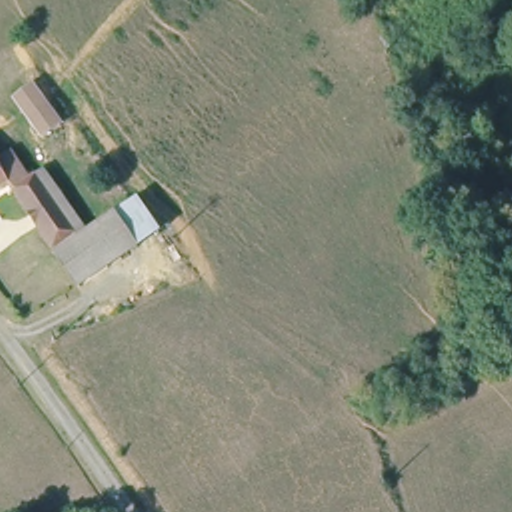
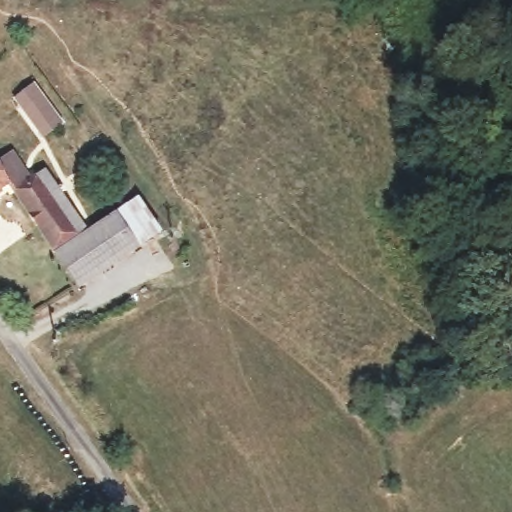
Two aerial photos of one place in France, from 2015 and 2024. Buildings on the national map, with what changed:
unchanged [(60,121),(42,136),(17,99),(37,84),(60,121)]
unchanged [(84,221),(53,242),(13,176),(0,184),(0,148),(28,130),(84,221)]
unchanged [(158,232),(81,283),(59,246),(138,198),(158,232)]

